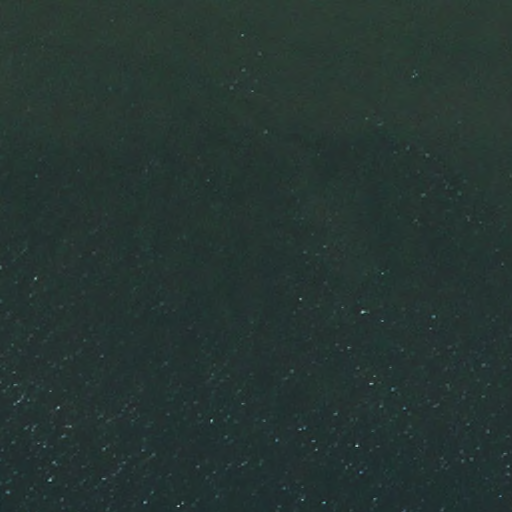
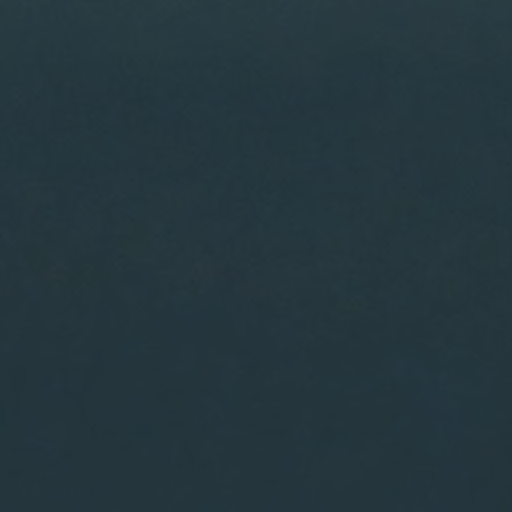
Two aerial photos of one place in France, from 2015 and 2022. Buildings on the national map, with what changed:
[]

